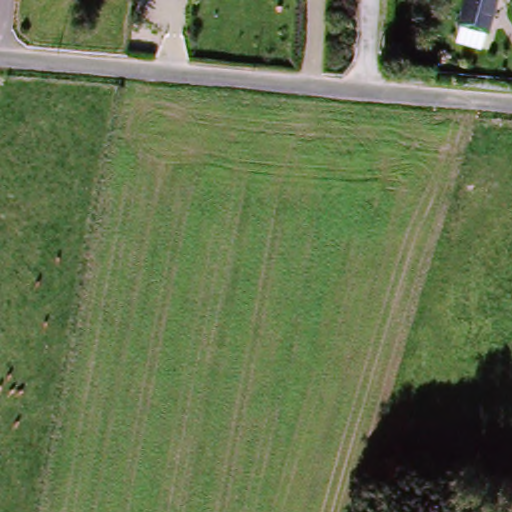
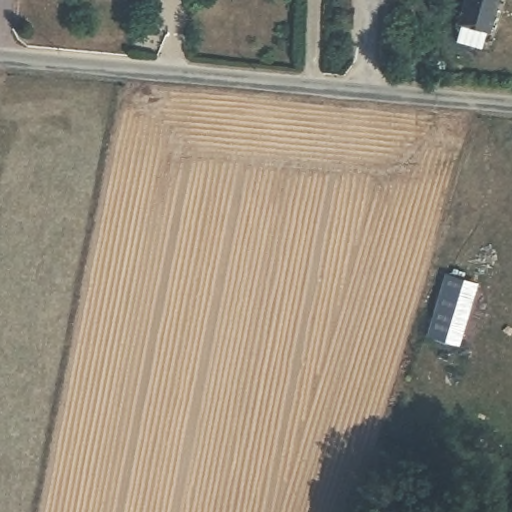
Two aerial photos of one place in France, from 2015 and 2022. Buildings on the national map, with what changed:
unchanged [(494,0),(482,44),(457,36),(466,0),(494,0)]
new [(480,283),(460,345),(427,336),(446,273),(480,283)]

